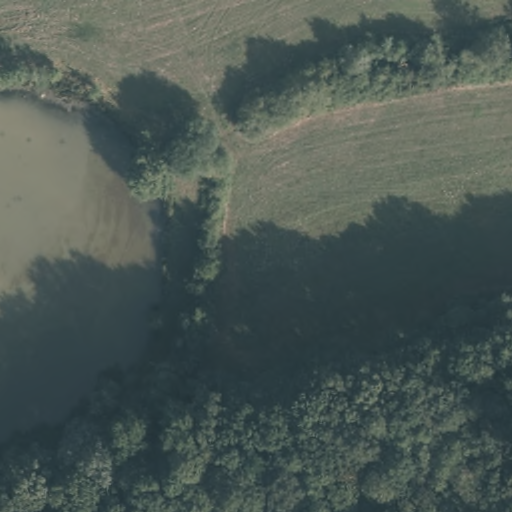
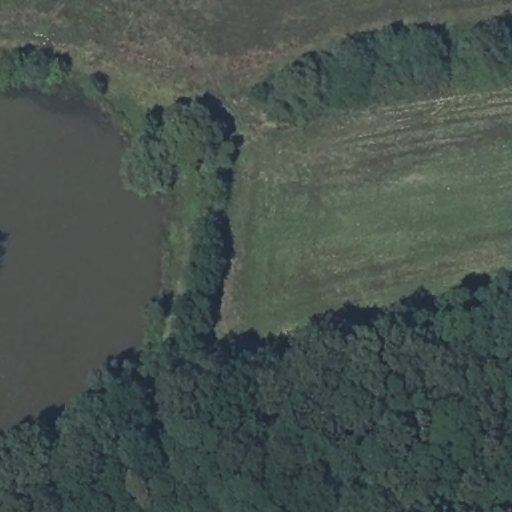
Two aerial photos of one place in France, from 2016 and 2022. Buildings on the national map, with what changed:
[]

